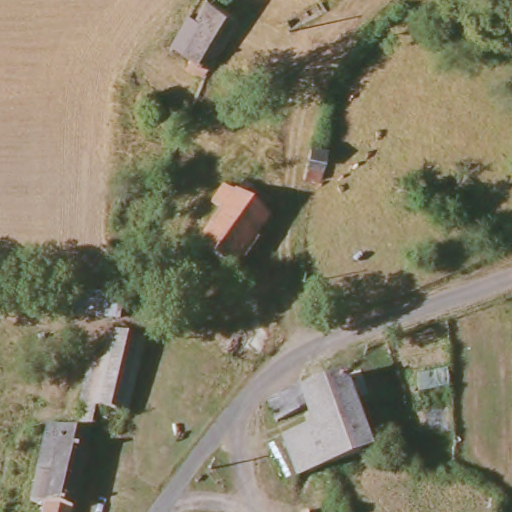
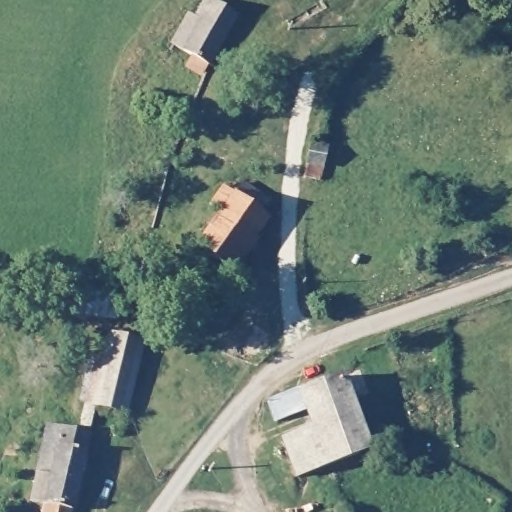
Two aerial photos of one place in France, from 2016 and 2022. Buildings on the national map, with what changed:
unchanged [(215,13),(243,28),(216,81),(192,69),(182,63),(207,10),(215,13)]
unchanged [(319,147),(326,148),(319,183),(312,181),(305,180),(314,146),(319,147)]
unchanged [(237,269),(205,245),(227,215),(214,205),(227,188),(240,198),(250,186),(272,204),(263,217),(272,224),(237,269)]
unchanged [(127,296),(126,317),(82,316),(82,295),(127,296)]
unchanged [(130,343),(145,346),(127,417),(100,411),(95,432),(85,429),(90,408),(83,406),(94,359),(105,362),(110,338),(130,343)]
unchanged [(367,447),(327,461),(292,472),(280,437),(309,428),(302,409),(272,418),(265,397),(339,372),(367,447)]
unchanged [(77,512),(46,512),(47,509),(34,507),(44,461),(58,434),(92,441),(77,512)]

